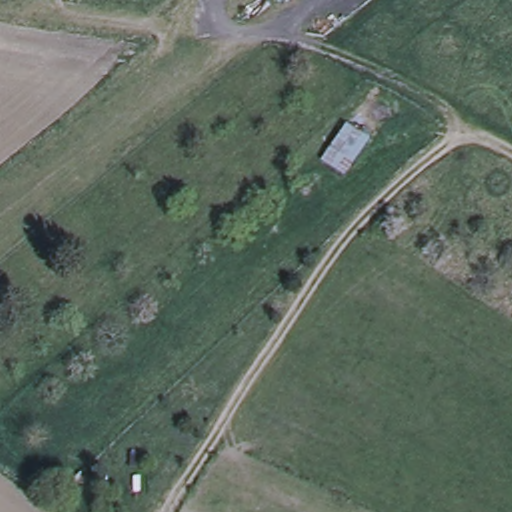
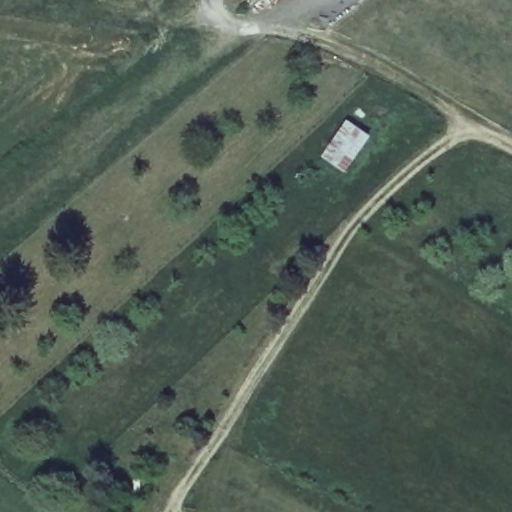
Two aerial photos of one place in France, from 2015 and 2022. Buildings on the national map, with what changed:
unchanged [(318,156),(371,93),(397,114),(346,173),(318,156)]

